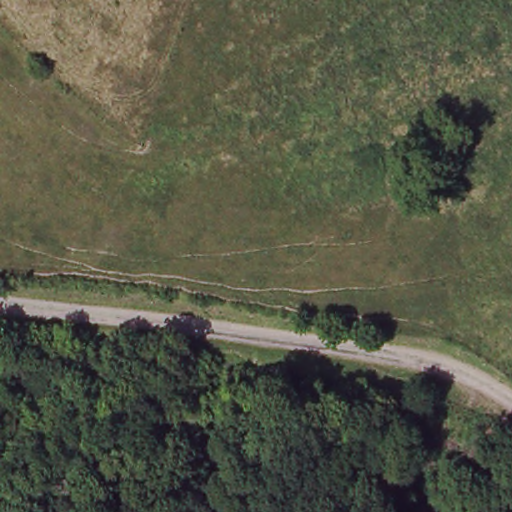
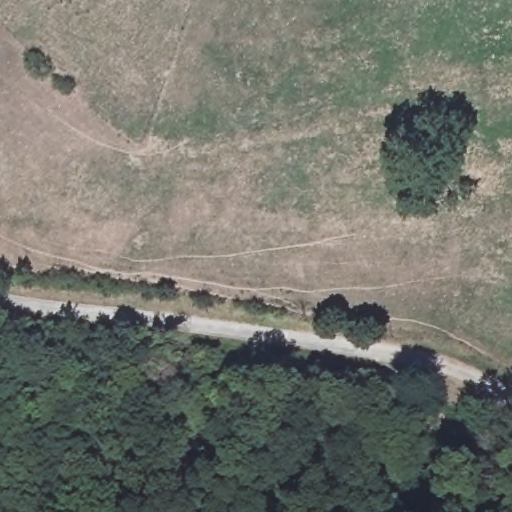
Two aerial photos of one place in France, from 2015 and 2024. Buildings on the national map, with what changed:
[]

